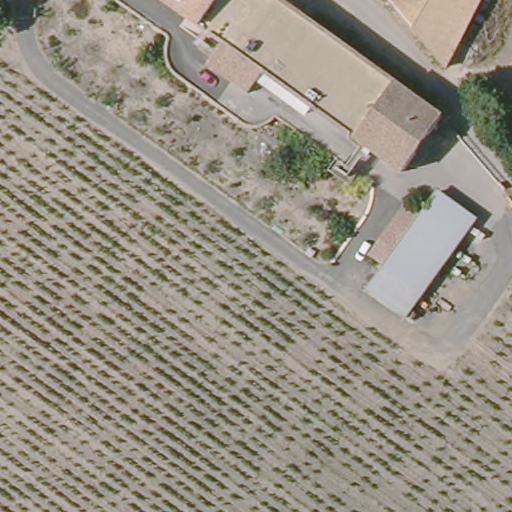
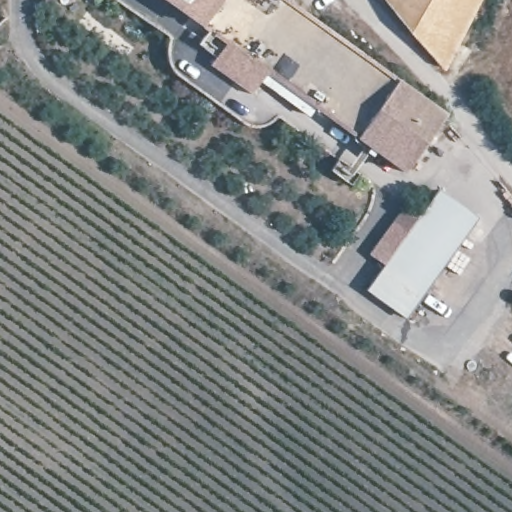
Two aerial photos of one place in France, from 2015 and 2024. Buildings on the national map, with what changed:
unchanged [(448,117),(408,172),(167,0),(284,0),(448,117)]
unchanged [(451,70),(392,0),(486,0),(451,70)]
unchanged [(405,319),(367,291),(438,192),(476,219),(405,319)]

